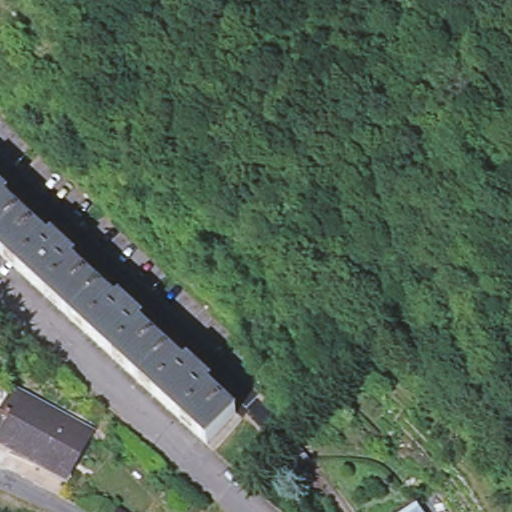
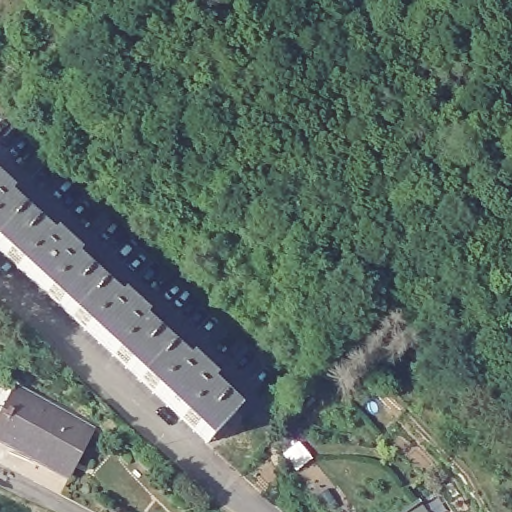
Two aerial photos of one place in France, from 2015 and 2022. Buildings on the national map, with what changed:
unchanged [(0,252),(0,196),(231,406),(203,438),(0,252)]
unchanged [(17,390),(85,425),(62,470),(35,456),(37,451),(0,433),(0,422),(17,390)]
unchanged [(408,512),(417,505),(422,512),(408,512)]

